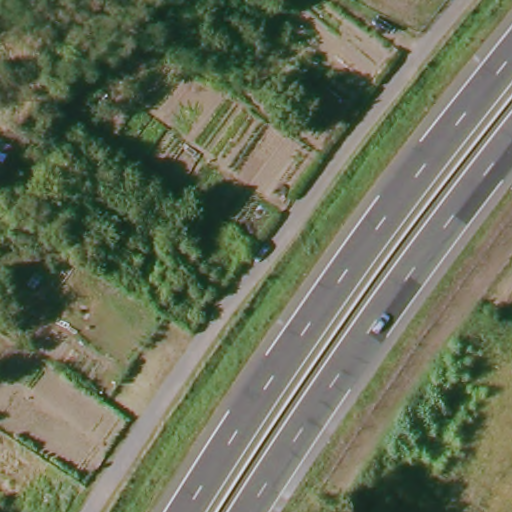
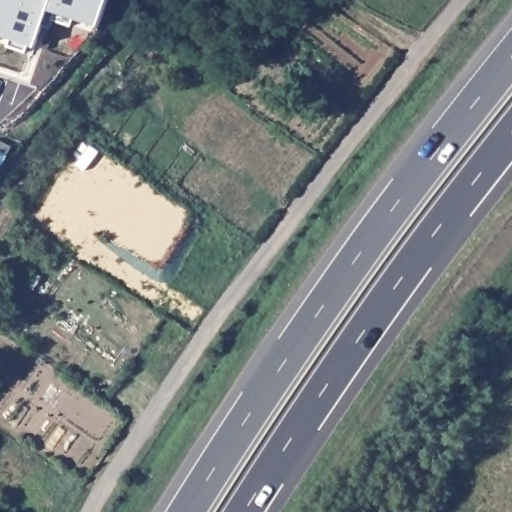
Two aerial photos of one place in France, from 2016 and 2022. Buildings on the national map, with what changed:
new [(48,10),(35,47),(0,36),(0,0),(109,0),(98,28),(48,10)]

